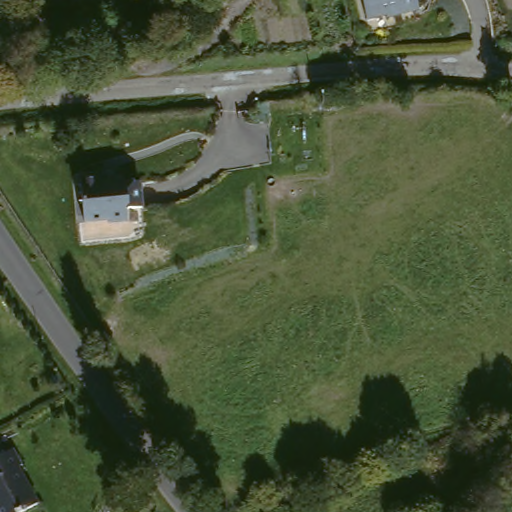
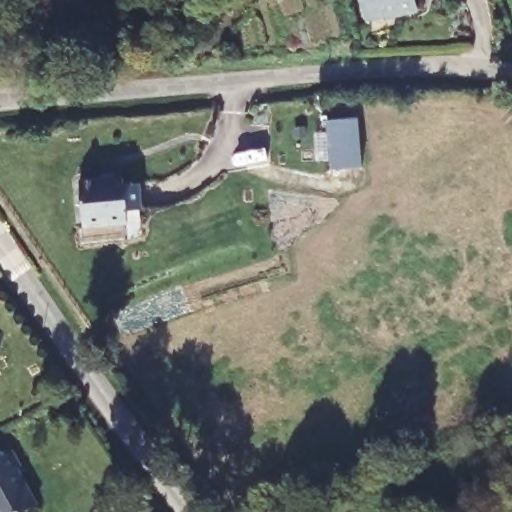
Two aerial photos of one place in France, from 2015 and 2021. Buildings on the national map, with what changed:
unchanged [(257,0),(260,0),(258,1),(257,0)]
unchanged [(371,16),(367,0),(419,0),(420,3),(371,16)]
new [(327,119),(359,116),(364,167),(331,169),(327,119)]
unchanged [(91,177),(101,176),(102,181),(111,180),(113,188),(128,186),(131,212),(114,214),(116,225),(96,227),(96,224),(73,226),(68,184),(91,182),(91,177)]
unchanged [(3,451),(12,466),(8,468),(29,504),(17,512),(0,512),(0,453),(3,451)]

